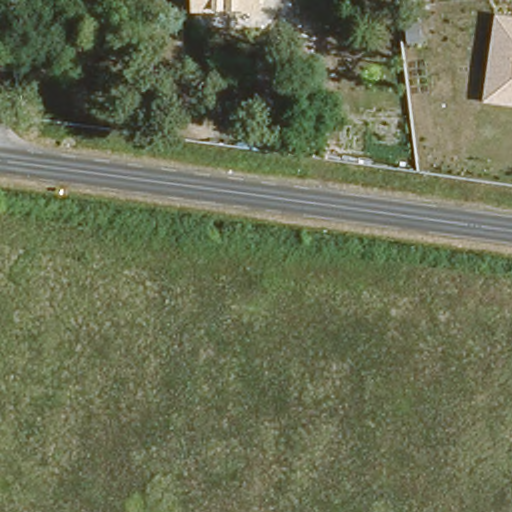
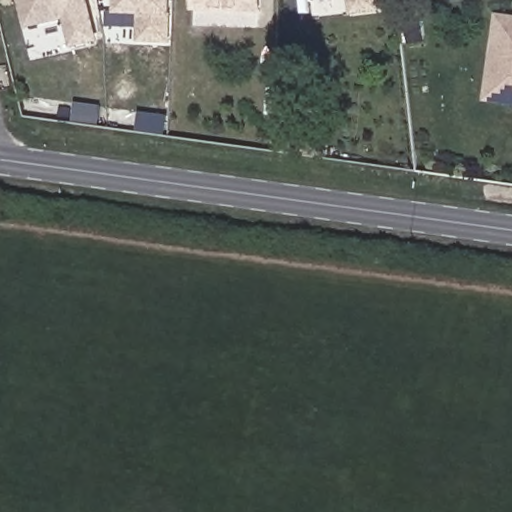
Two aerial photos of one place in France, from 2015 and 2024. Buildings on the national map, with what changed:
new [(71,44),(65,16),(26,25),(20,0),(84,0),(94,38),(71,44)]
new [(136,39),(137,11),(114,11),(114,0),(165,0),(164,40),(136,39)]
unchanged [(171,9),(171,0),(238,0),(238,9),(171,9)]
unchanged [(269,0),(268,11),(238,9),(238,0),(269,0)]
new [(350,11),(349,0),(374,0),(375,9),(350,11)]
unchanged [(500,14),(512,15),(512,107),(484,103),(500,14)]

